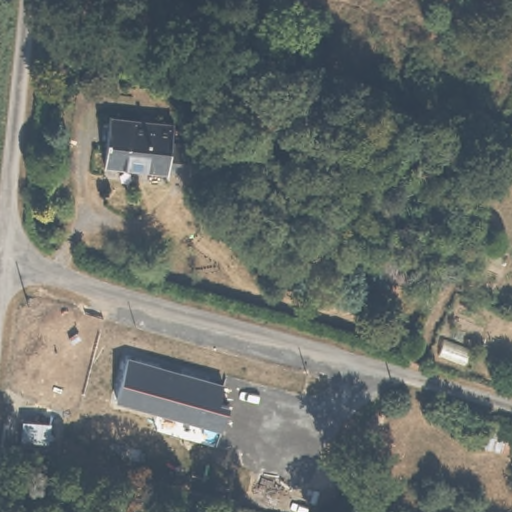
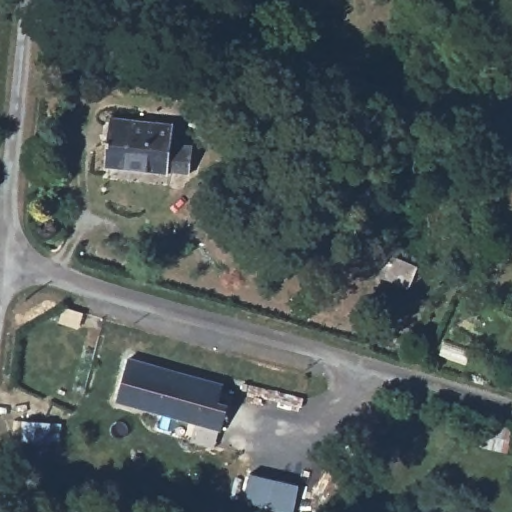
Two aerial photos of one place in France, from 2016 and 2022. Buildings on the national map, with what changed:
unchanged [(191,176),(102,165),(109,117),(171,125),(170,140),(195,144),(191,176)]
unchanged [(403,284),(381,274),(394,252),(414,262),(403,284)]
unchanged [(190,442),(195,425),(116,403),(129,357),(221,386),(218,405),(228,407),(214,448),(190,442)]
new [(288,512),(245,503),(250,472),(301,483),(293,512),(288,512)]

